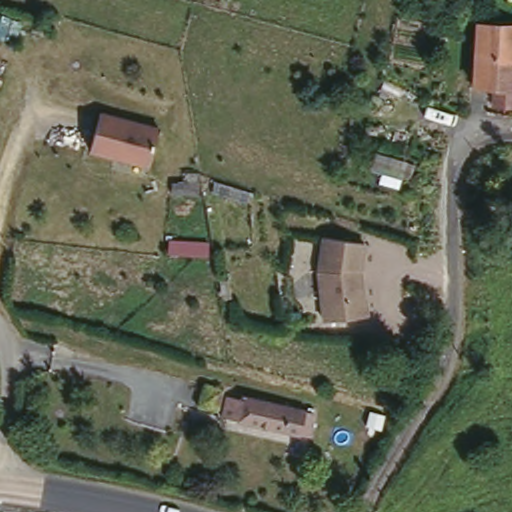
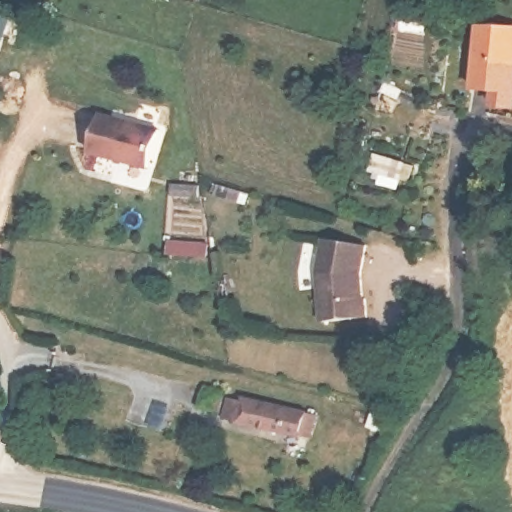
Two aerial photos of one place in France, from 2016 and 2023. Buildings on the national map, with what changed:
unchanged [(19,16),(4,70),(0,69),(0,13),(19,16)]
unchanged [(512,30),(512,112),(490,111),(490,97),(470,94),(470,27),(512,30)]
unchanged [(101,112),(158,126),(149,164),(92,149),(101,112)]
unchanged [(401,189),(378,184),(382,173),(371,170),(376,152),(412,161),(401,189)]
unchanged [(212,254),(172,255),(170,238),(210,237),(212,254)]
unchanged [(366,241),(364,290),(370,315),(323,321),(317,279),(322,241),(366,241)]
unchanged [(304,444),(235,425),(219,417),(220,414),(200,408),(205,386),(227,394),(244,397),(312,413),(304,444)]

